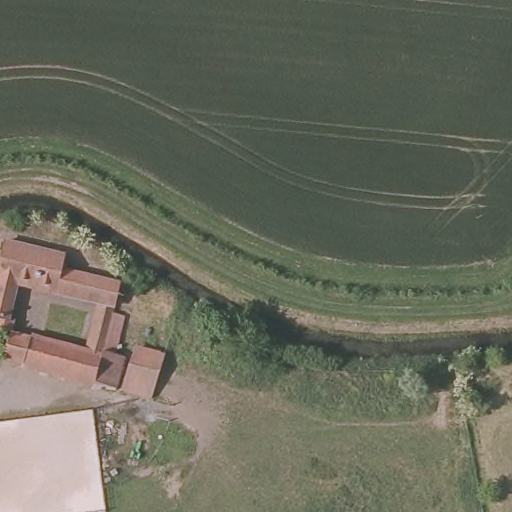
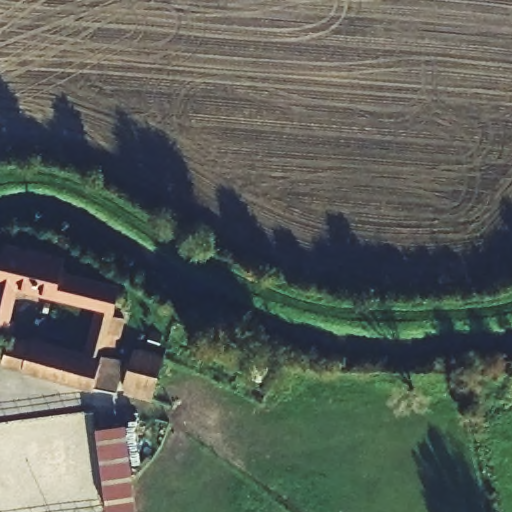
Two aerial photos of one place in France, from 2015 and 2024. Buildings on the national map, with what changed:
unchanged [(58,263),(125,282),(107,350),(125,355),(117,383),(97,378),(0,360),(0,285),(1,281),(0,280),(0,255),(5,239),(61,252),(58,263)]
unchanged [(118,392),(133,348),(161,357),(149,401),(118,392)]
new [(95,427),(126,423),(136,502),(106,506),(95,427)]

